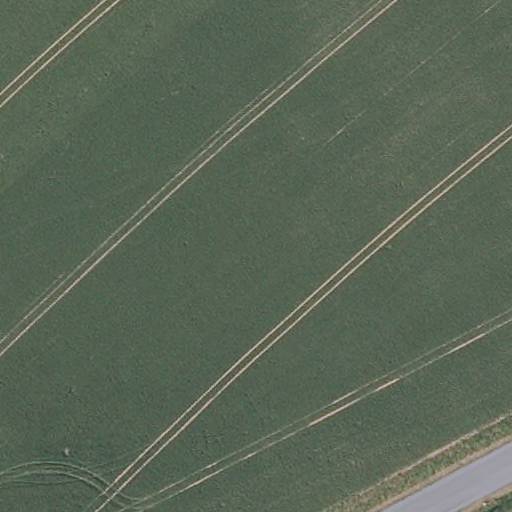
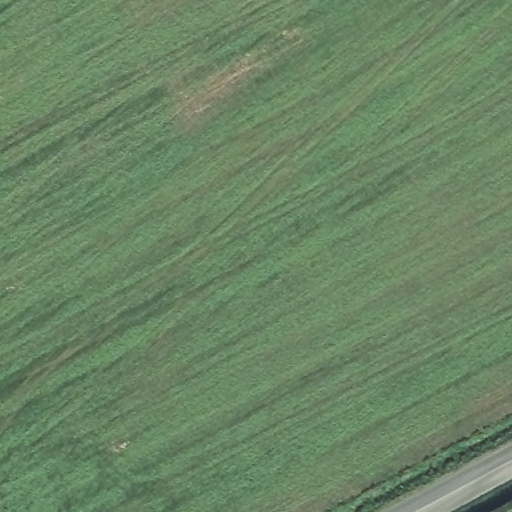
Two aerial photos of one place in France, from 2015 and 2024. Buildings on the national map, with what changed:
[]

